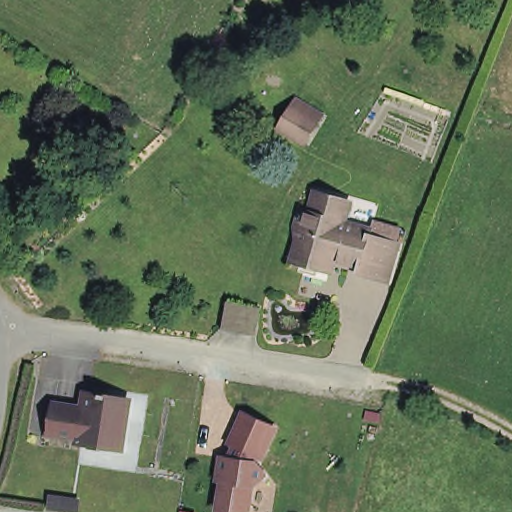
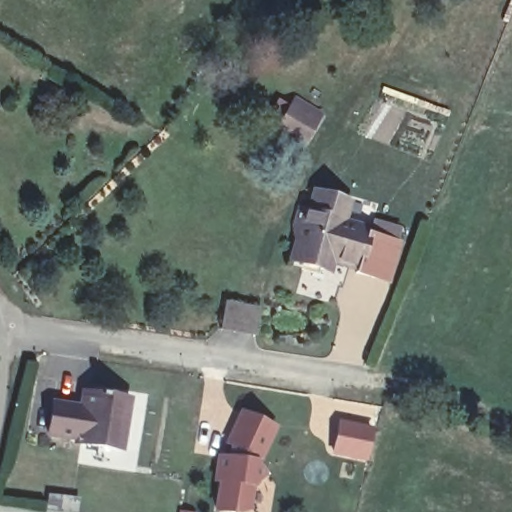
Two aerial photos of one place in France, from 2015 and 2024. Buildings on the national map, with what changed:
unchanged [(279,128),(291,109),(296,101),(322,117),(317,125),(304,144),(279,128)]
unchanged [(317,260),(304,256),(291,252),(297,234),(296,214),(296,210),(300,201),(303,201),(309,203),(315,184),(352,193),(346,214),(370,221),(371,215),(399,222),(400,223),(396,236),(398,237),(387,274),(378,272),(355,265),(357,260),(349,257),(332,252),(329,263),(317,260)]
unchanged [(257,309),(253,337),(239,334),(244,307),(257,309)]
unchanged [(124,451),(85,443),(85,440),(51,434),(56,404),(88,410),(91,396),(102,398),(102,395),(111,396),(110,399),(132,403),(124,451)]
unchanged [(267,463),(265,488),(259,488),(255,512),(220,512),(223,484),(217,483),(220,454),(229,455),(243,408),(282,428),(267,463)]
new [(374,428),(369,462),(332,455),(337,420),(374,428)]

